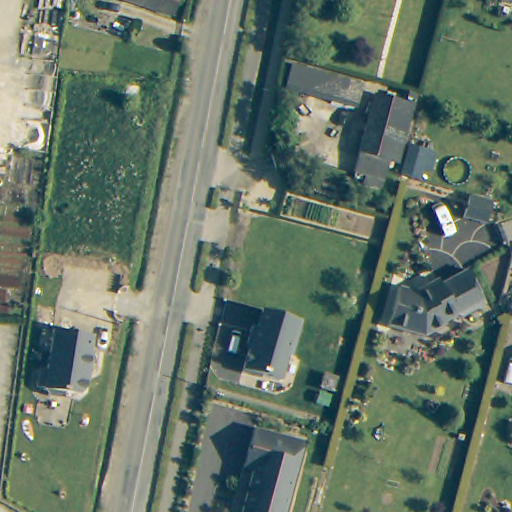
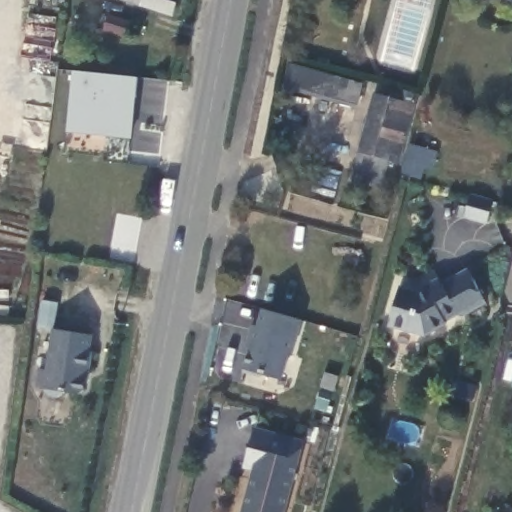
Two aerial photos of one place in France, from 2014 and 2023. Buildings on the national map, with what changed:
unchanged [(120,0),(181,0),(176,18),(120,0)]
unchanged [(499,0),(512,0),(512,3),(499,0)]
new [(128,137),(86,131),(87,126),(65,124),(74,69),(139,78),(136,98),(134,97),(132,111),(128,137)]
unchanged [(292,69),(361,82),(352,109),(287,91),(292,69)]
unchanged [(377,94),(413,105),(398,162),(360,151),(377,94)]
new [(474,195),(496,200),(490,224),(468,217),(474,195)]
unchanged [(402,288),(418,293),(438,280),(441,285),(467,271),(486,305),(465,316),(456,316),(425,335),(392,325),(402,288)]
unchanged [(292,355),(289,355),(282,380),(264,374),(263,377),(245,372),(253,344),(249,343),(254,325),(260,326),(265,310),(270,311),(302,321),(292,355)]
unchanged [(46,392),(39,391),(42,374),(48,375),(54,334),(94,339),(92,356),(94,356),(92,375),(88,374),(86,395),(81,398),(67,397),(62,402),(51,400),(46,392)]
unchanged [(286,512),(245,512),(257,468),(247,465),(257,427),(305,440),(286,512)]

